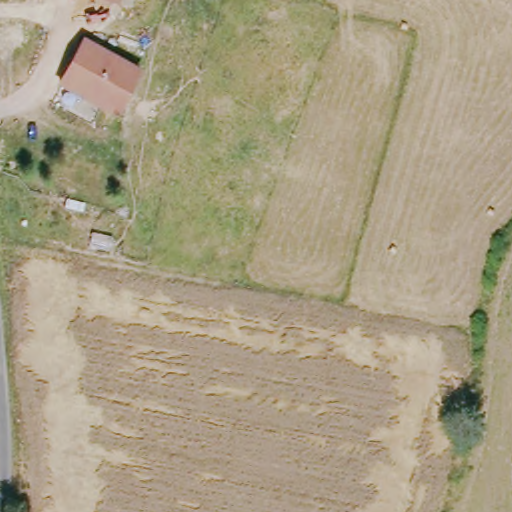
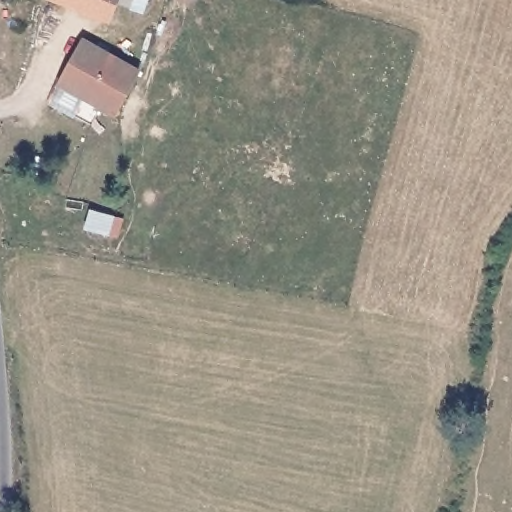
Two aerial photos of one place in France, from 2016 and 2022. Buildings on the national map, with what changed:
unchanged [(111,1),(107,0),(111,0),(111,1)]
unchanged [(113,117),(58,86),(82,45),(137,76),(113,117)]

